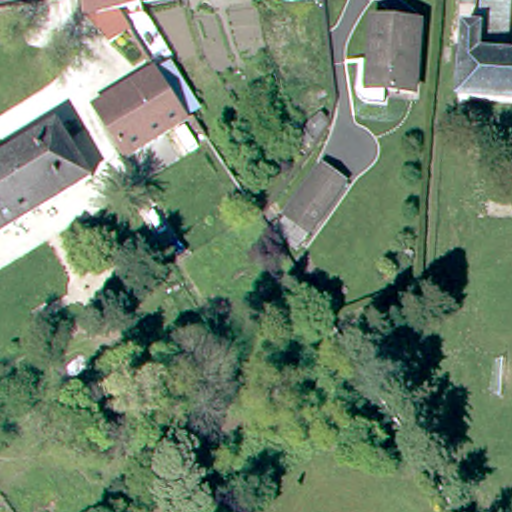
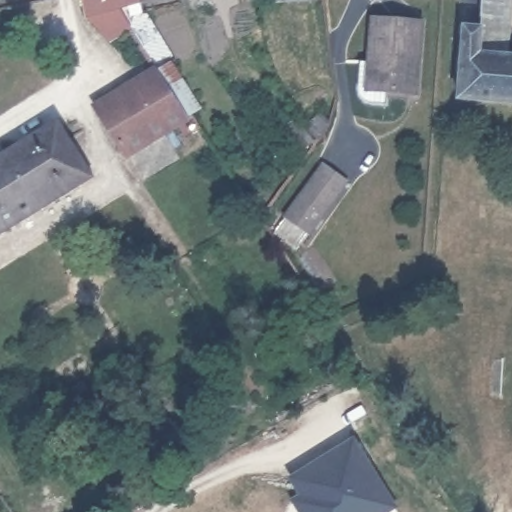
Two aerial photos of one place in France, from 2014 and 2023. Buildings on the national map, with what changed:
unchanged [(137,34),(107,42),(83,19),(80,0),(155,0),(130,1),(137,34)]
unchanged [(476,27),(486,28),(489,0),(512,0),(512,17),(509,54),(512,54),(512,100),(462,96),(476,27)]
unchanged [(379,18),(407,20),(426,21),(425,31),(422,87),(393,86),(392,98),(376,97),(373,95),(369,92),(366,88),(365,87),(366,58),(376,59),(379,18)]
unchanged [(85,104),(146,66),(158,57),(178,89),(165,97),(179,118),(117,155),(85,104)]
unchanged [(58,115),(91,170),(0,224),(0,149),(58,115)]
unchanged [(322,162),(348,180),(309,232),(284,213),(322,162)]
new [(316,469),(318,472),(355,450),(393,512),(307,512),(308,511),(292,486),(316,469)]

